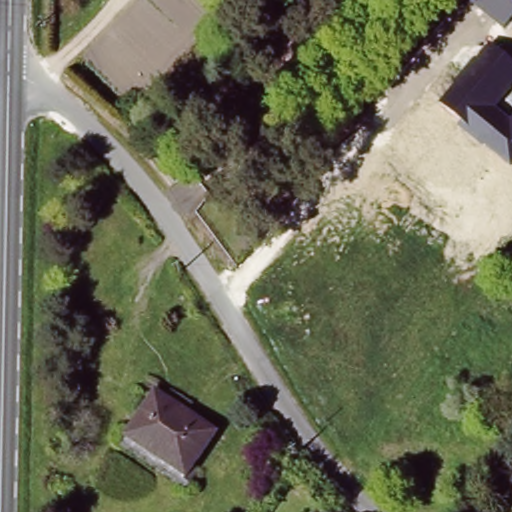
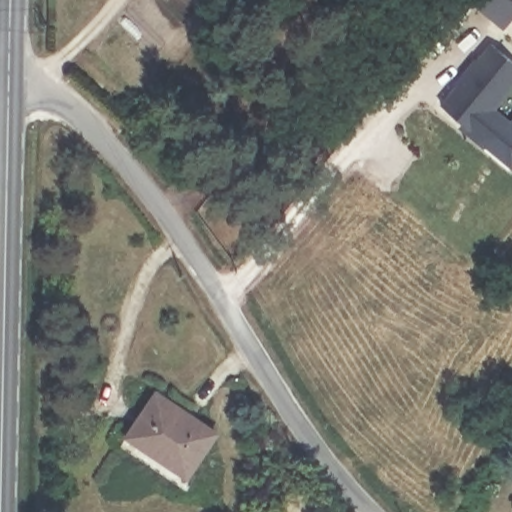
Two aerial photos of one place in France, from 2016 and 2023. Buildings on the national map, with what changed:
unchanged [(512,19),(502,30),(463,0),(512,0),(512,19)]
unchanged [(512,60),(512,88),(496,110),(510,124),(512,122),(512,171),(486,147),(483,150),(457,127),(461,123),(438,104),(489,41),(512,60)]
unchanged [(158,395),(218,428),(195,472),(135,438),(158,395)]

